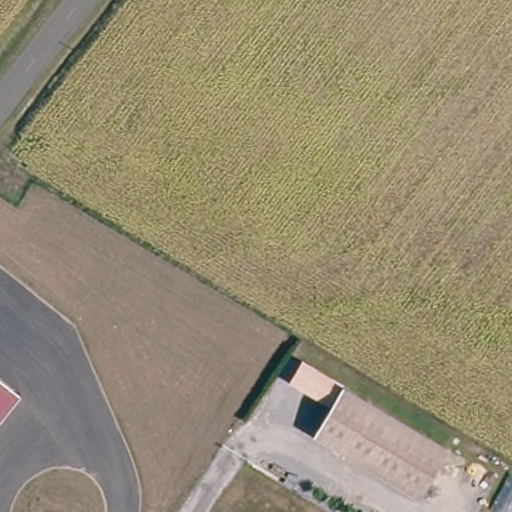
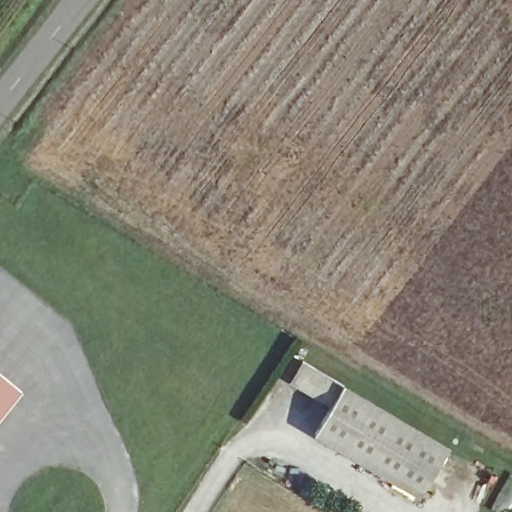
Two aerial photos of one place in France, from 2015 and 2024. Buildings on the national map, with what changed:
unchanged [(328,407),(287,384),(301,360),(342,383),(328,407)]
unchanged [(0,420),(0,379),(20,395),(0,420)]
unchanged [(342,383),(446,445),(418,492),(314,431),(342,383)]

